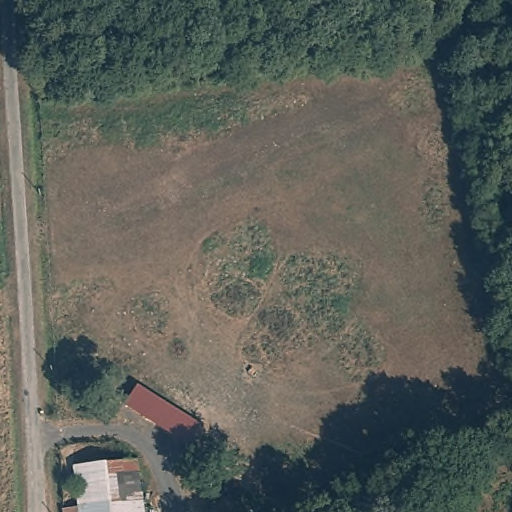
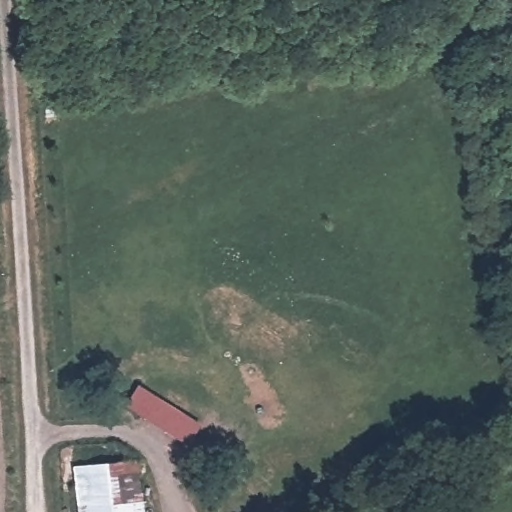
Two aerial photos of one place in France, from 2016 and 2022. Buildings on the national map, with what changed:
unchanged [(147,454),(149,470),(131,472),(136,512),(82,512),(76,462),(147,454)]

